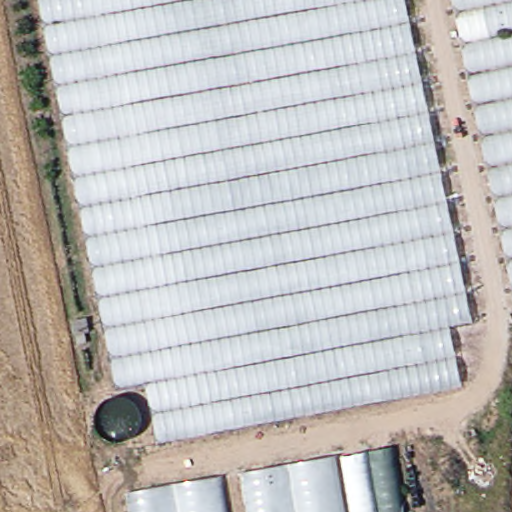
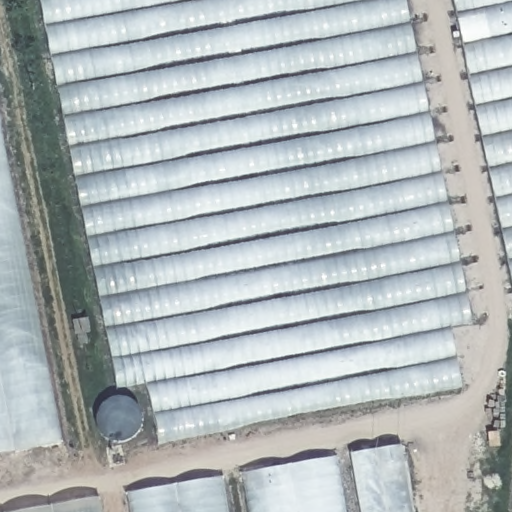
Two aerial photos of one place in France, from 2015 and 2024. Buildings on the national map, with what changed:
unchanged [(488,319),(453,332),(462,388),(167,443),(146,383),(116,386),(48,0),(422,0),(488,319)]
unchanged [(465,0),(512,0),(512,242),(465,0)]
new [(0,456),(0,80),(70,441),(0,456)]
unchanged [(440,512),(359,512),(348,452),(426,440),(440,512)]
unchanged [(335,460),(345,512),(255,512),(249,474),(335,460)]
unchanged [(230,512),(135,512),(132,497),(225,480),(230,512)]
new [(18,512),(103,496),(106,512),(18,512)]

